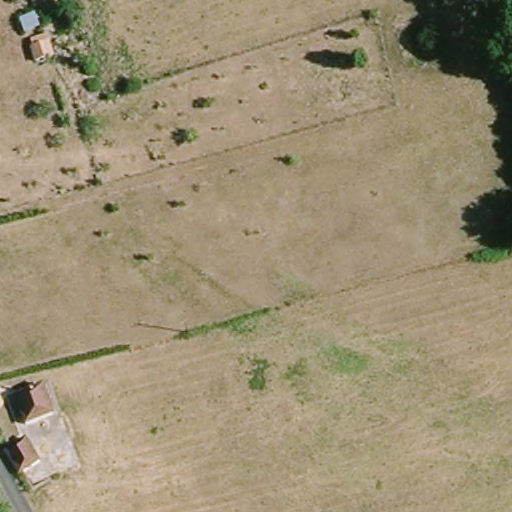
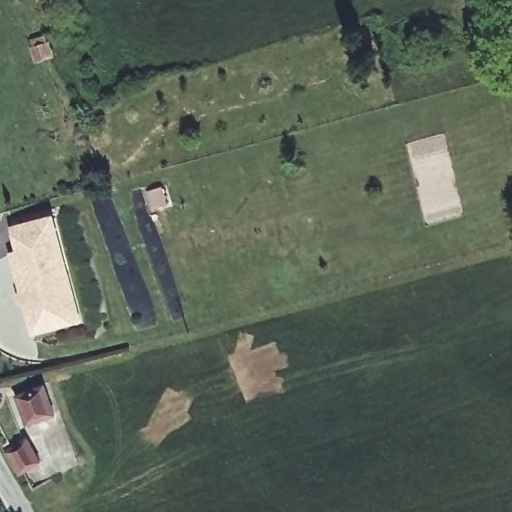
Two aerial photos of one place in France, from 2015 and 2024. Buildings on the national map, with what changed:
new [(84,322),(32,337),(10,254),(17,252),(12,228),(55,217),(84,322)]
unchanged [(27,428),(15,399),(50,388),(58,417),(33,426),(27,428)]
unchanged [(30,445),(39,464),(18,474),(7,456),(30,445)]

